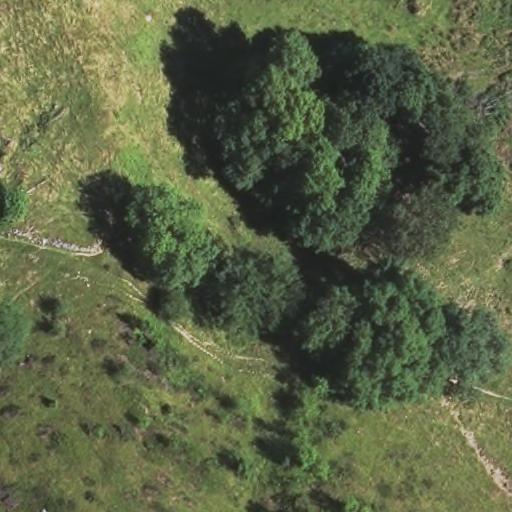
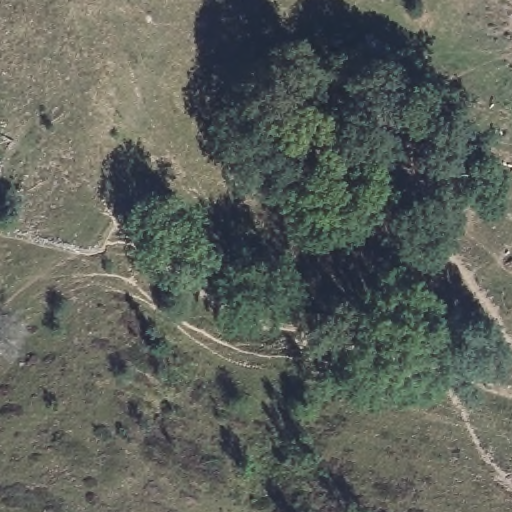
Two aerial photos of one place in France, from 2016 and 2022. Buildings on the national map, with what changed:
unchanged [(7,157),(0,180),(0,152),(7,157)]

